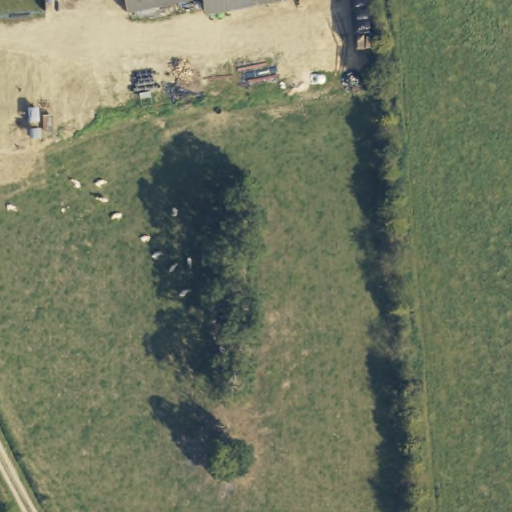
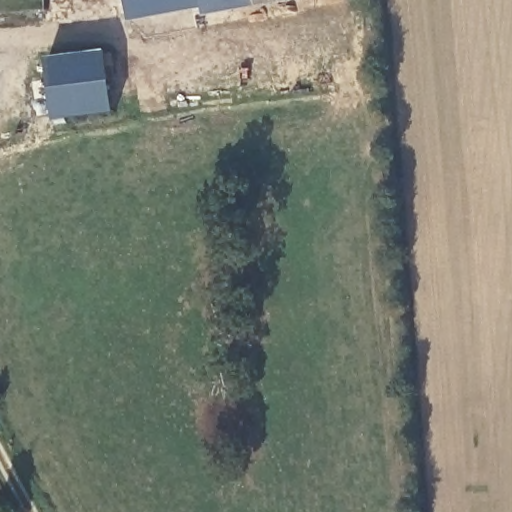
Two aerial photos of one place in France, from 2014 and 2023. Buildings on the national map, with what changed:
unchanged [(124,0),(221,0),(202,4),(127,17),(124,0)]
unchanged [(204,15),(202,4),(221,0),(288,0),(204,15)]
new [(107,52),(117,114),(57,121),(48,60),(107,52)]

